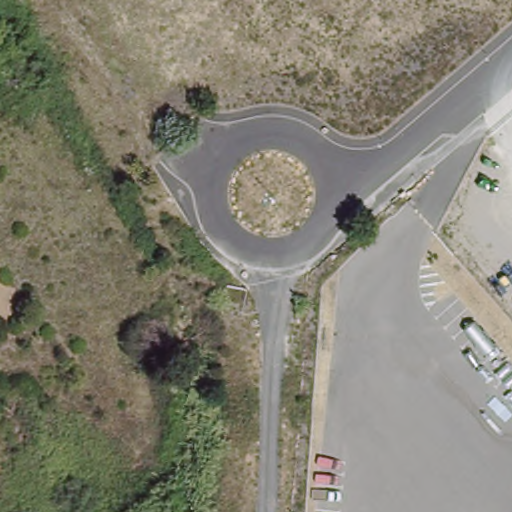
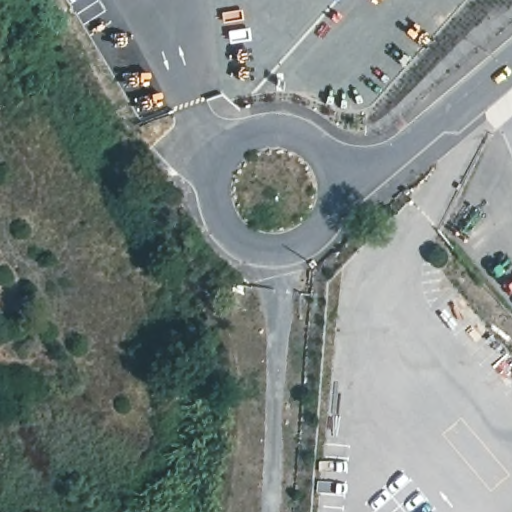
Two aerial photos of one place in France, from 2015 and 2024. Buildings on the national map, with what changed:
[]

